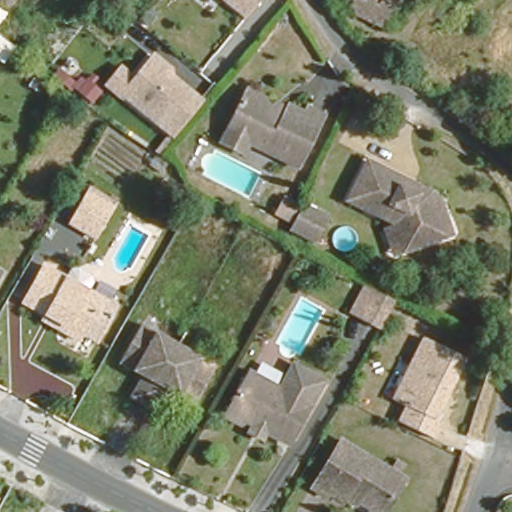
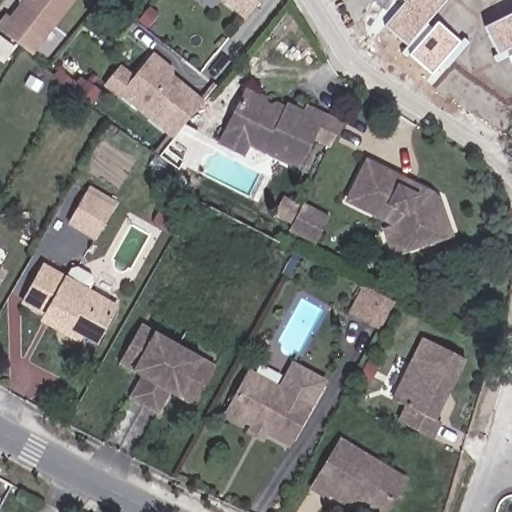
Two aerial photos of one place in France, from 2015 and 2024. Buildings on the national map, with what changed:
new [(77,0),(34,55),(0,29),(0,21),(6,13),(10,16),(22,0),(77,0)]
unchanged [(224,0),(259,0),(245,17),(224,0)]
demolished [(327,1),(328,0),(400,0),(386,32),(327,1)]
new [(404,0),(447,0),(427,23),(432,28),(438,22),(461,41),(465,37),(470,41),(447,67),(441,62),(431,73),(410,53),(407,56),(402,51),(407,44),(385,25),(405,1),(404,0)]
new [(512,63),(508,56),(497,63),(493,56),(497,51),(485,27),(512,13),(512,63)]
unchanged [(174,66),(174,74),(204,99),(172,138),(103,84),(120,63),(135,73),(154,52),(174,66)]
unchanged [(295,173),(245,152),(240,162),(212,150),(241,89),(264,99),(262,102),(271,107),(273,103),(298,111),(301,105),(321,115),(295,173)]
unchanged [(382,220),(393,216),(349,196),(366,157),(371,160),(410,177),(430,188),(440,197),(441,200),(453,232),(445,234),(405,248),(394,253),(382,220)]
unchanged [(69,217),(87,185),(114,200),(96,232),(69,217)]
unchanged [(283,234),(297,206),(327,220),(313,248),(283,234)]
unchanged [(51,313),(31,302),(50,269),(106,300),(82,343),(68,334),(46,322),(51,313)]
unchanged [(377,333),(347,318),(362,290),(391,305),(377,333)]
unchanged [(192,397),(169,385),(157,406),(130,390),(141,369),(121,357),(141,320),(212,359),(192,397)]
unchanged [(447,388),(443,396),(447,398),(440,416),(445,418),(440,428),(405,410),(408,401),(397,395),(425,335),(467,355),(451,389),(447,388)]
unchanged [(248,365),(279,382),(291,360),(324,379),(312,400),(286,444),(224,409),(248,365)]
unchanged [(363,500),(360,493),(350,487),(342,500),(327,491),(324,496),(310,488),(340,433),(405,469),(382,511),(363,500)]

